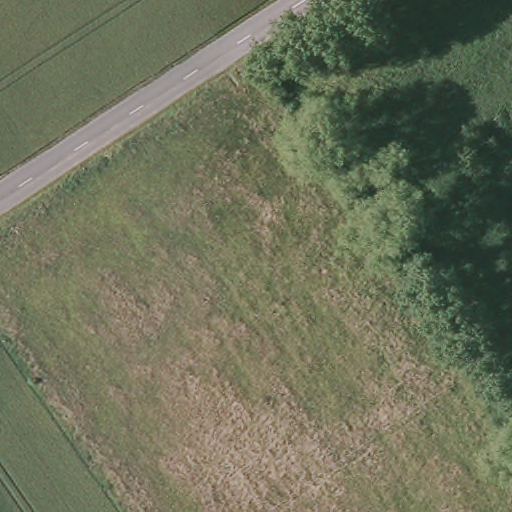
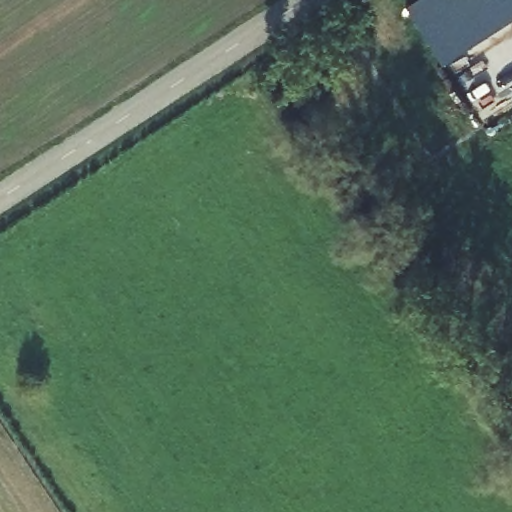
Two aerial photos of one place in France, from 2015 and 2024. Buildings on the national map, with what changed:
new [(411,0),(512,0),(512,18),(448,60),(410,1),(411,0)]

